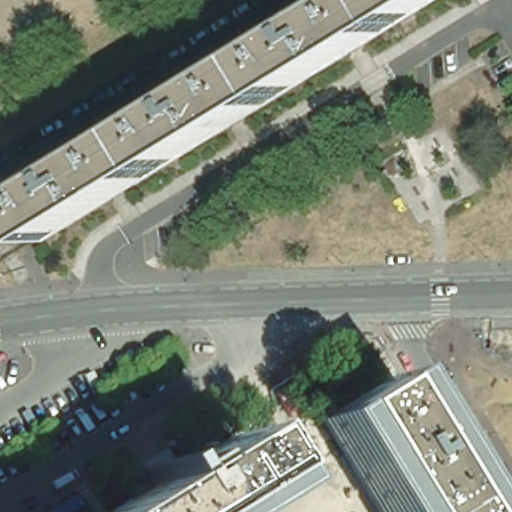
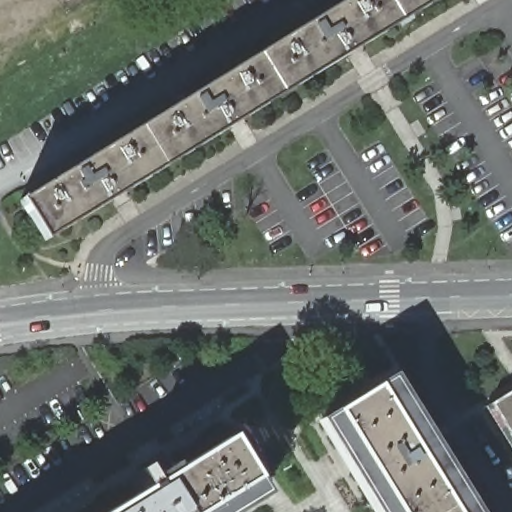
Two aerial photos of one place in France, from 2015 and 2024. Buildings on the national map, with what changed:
unchanged [(272,45),(283,39),(295,32),(338,5),(347,0),(385,0),(400,23),(361,47),(349,55),(282,96),(267,71),(257,54),(260,53),(272,45)]
unchanged [(385,0),(438,0),(400,23),(385,0)]
unchanged [(177,104),(220,78),(257,54),(267,71),(282,96),(242,120),(231,127),(164,169),(138,128),(177,104)]
unchanged [(164,169),(125,193),(112,200),(45,241),(20,200),(58,177),(102,150),(138,128),(164,169)]
unchanged [(440,512),(397,512),(374,475),(369,467),(335,411),(377,386),(400,423),(427,468),(451,505),(440,512)]
new [(491,404),(512,391),(512,438),(491,404)]
unchanged [(140,484),(139,483),(148,477),(169,464),(170,465),(176,475),(229,443),(254,484),(210,512),(116,512),(146,494),(140,484)]
unchanged [(451,505),(455,512),(440,512),(451,505)]

